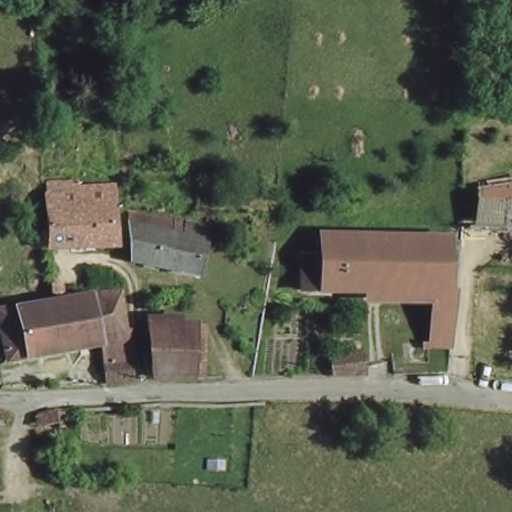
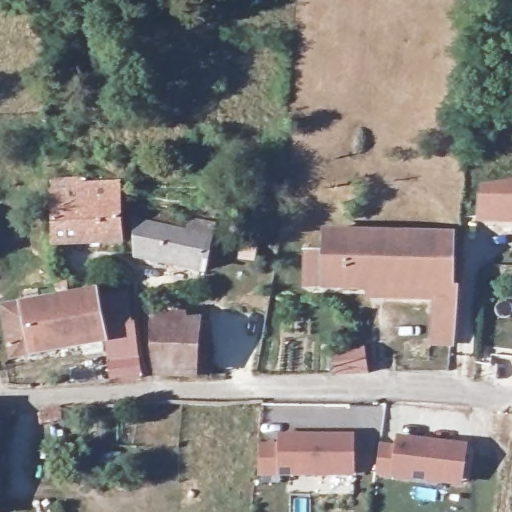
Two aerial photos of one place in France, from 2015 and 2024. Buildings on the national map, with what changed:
unchanged [(119,247),(52,249),(50,186),(72,185),(75,195),(115,193),(119,247)]
unchanged [(500,199),(500,197),(500,194),(512,194),(512,222),(499,222),(477,222),(479,197),(500,199)]
unchanged [(135,261),(145,215),(193,223),(198,225),(200,229),(200,232),(207,234),(199,275),(135,261)]
unchanged [(432,346),(436,296),(305,295),(306,262),(323,262),(325,237),(454,240),(454,286),(458,287),(453,348),(432,346)]
unchanged [(58,285),(75,284),(76,297),(59,298),(58,285)]
unchanged [(115,345),(107,347),(108,351),(17,367),(5,317),(71,302),(74,306),(93,305),(94,295),(126,293),(131,336),(139,337),(143,387),(119,388),(115,345)]
unchanged [(161,381),(154,371),(154,334),(189,331),(199,330),(194,380),(161,381)]
unchanged [(332,362),(364,354),(366,376),(333,377),(332,362)]
unchanged [(60,412),(66,427),(45,435),(40,421),(60,412)]
new [(256,479),(256,444),(277,445),(277,436),(354,435),(355,478),(278,479),(256,479)]
new [(394,435),(467,444),(460,489),(373,476),(378,445),(392,446),(394,435)]

